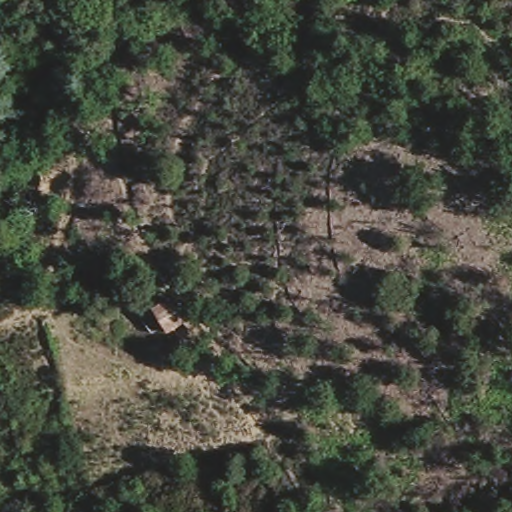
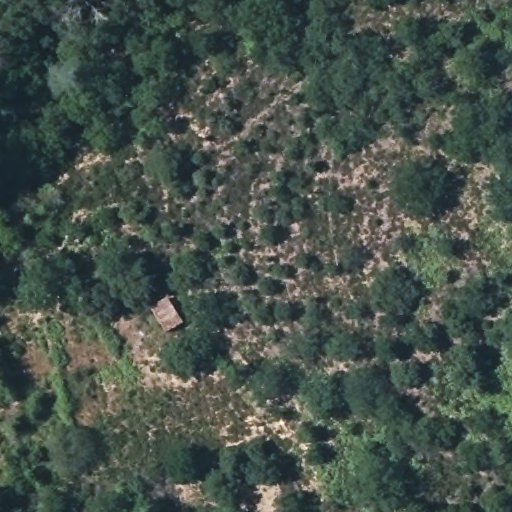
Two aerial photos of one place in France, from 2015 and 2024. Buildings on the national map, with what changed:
unchanged [(164,335),(150,311),(167,296),(185,320),(164,335)]

